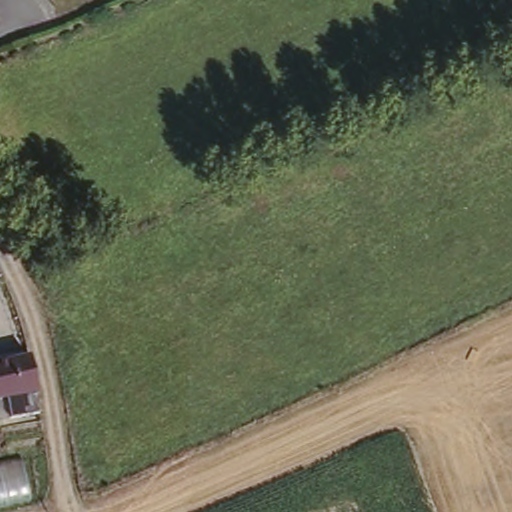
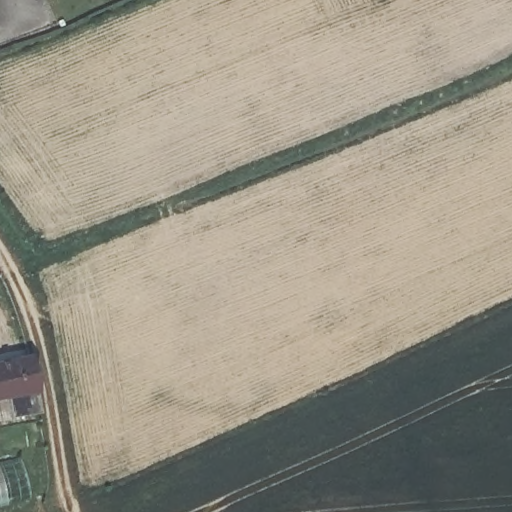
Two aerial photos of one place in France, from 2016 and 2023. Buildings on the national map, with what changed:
unchanged [(2,399),(0,400),(0,360),(30,355),(40,414),(7,418),(2,399)]
unchanged [(0,507),(0,464),(20,459),(27,501),(0,507)]

